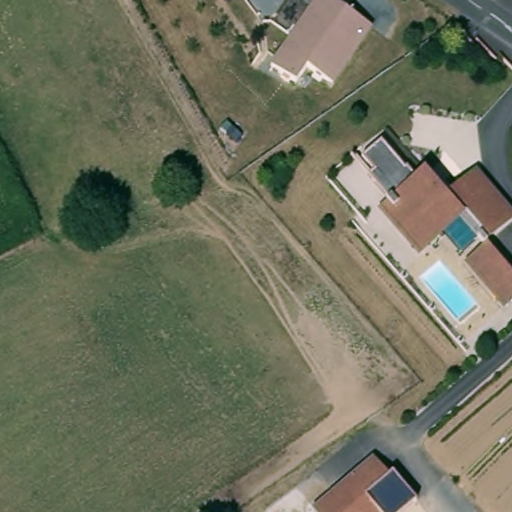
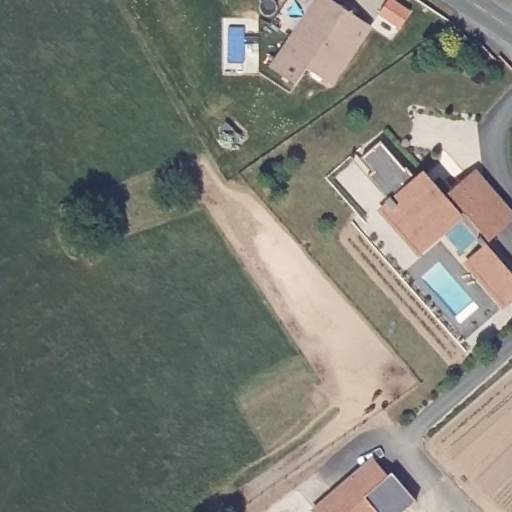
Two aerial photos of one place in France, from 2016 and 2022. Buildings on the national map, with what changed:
unchanged [(334,79),(309,62),(299,75),(276,60),(320,0),(343,0),(374,23),(334,79)]
unchanged [(481,170),(512,205),(512,220),(492,238),(493,240),(489,243),(464,213),(447,228),(442,222),(419,242),(389,208),(398,200),(374,173),(379,169),(368,155),(387,138),(411,165),(413,164),(424,177),(429,173),(437,182),(450,197),(481,170)]
unchanged [(510,300),(502,291),(478,263),(473,257),(492,242),(496,247),(512,266),(512,299),(510,300)]
unchanged [(351,472),(364,460),(379,478),(394,465),(419,493),(397,512),(386,512),(383,509),(354,476),(351,472)]
unchanged [(383,509),(380,512),(323,512),(319,507),(354,476),(383,509)]

